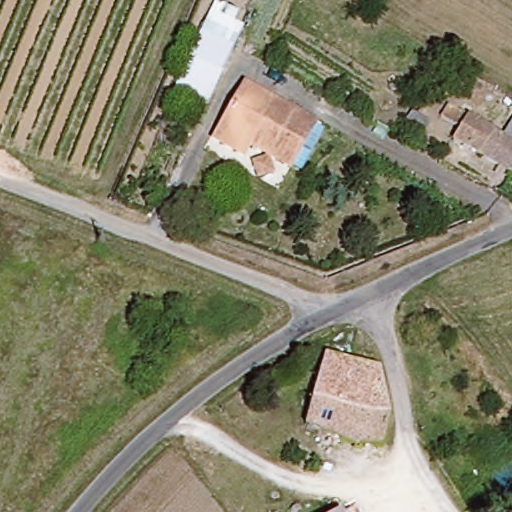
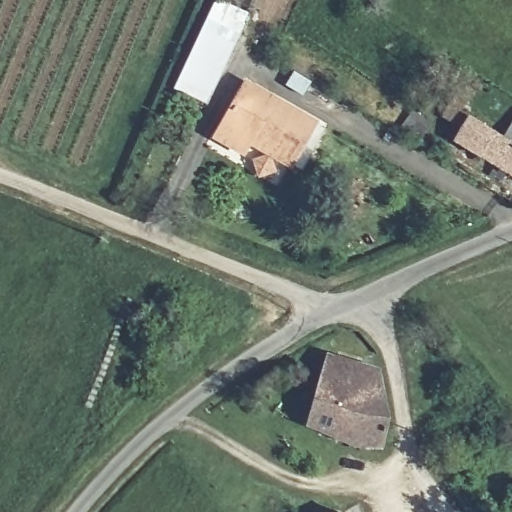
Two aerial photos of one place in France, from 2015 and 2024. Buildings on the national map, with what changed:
unchanged [(175,87),(206,17),(240,34),(207,102),(175,87)]
unchanged [(213,134),(246,82),(315,124),(289,167),(250,142),(244,152),(213,134)]
unchanged [(469,112),(507,136),(512,138),(512,172),(452,136),(469,112)]
unchanged [(512,129),(512,138),(507,136),(512,129)]
unchanged [(374,367),(387,419),(377,450),(305,427),(326,351),(374,367)]

